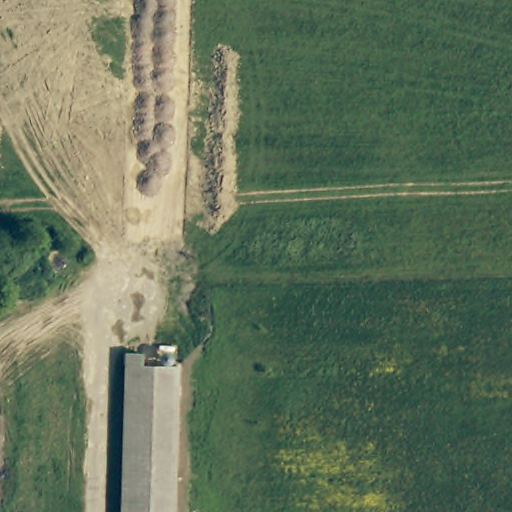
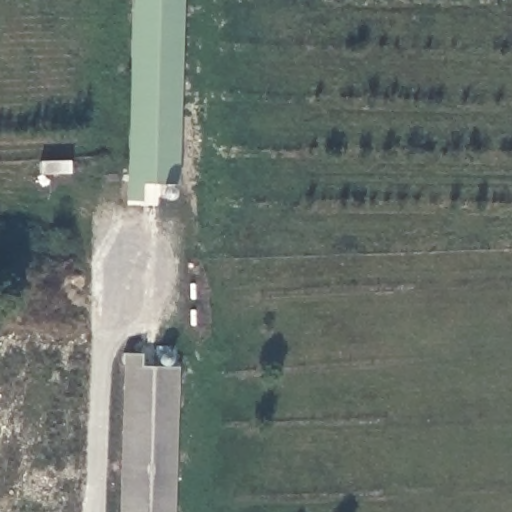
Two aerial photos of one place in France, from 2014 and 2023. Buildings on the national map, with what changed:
new [(178,184),(141,184),(141,202),(125,201),(130,0),(182,0),(178,184)]
unchanged [(139,366),(174,368),(170,512),(121,512),(124,366),(118,365),(119,352),(139,353),(139,366)]

